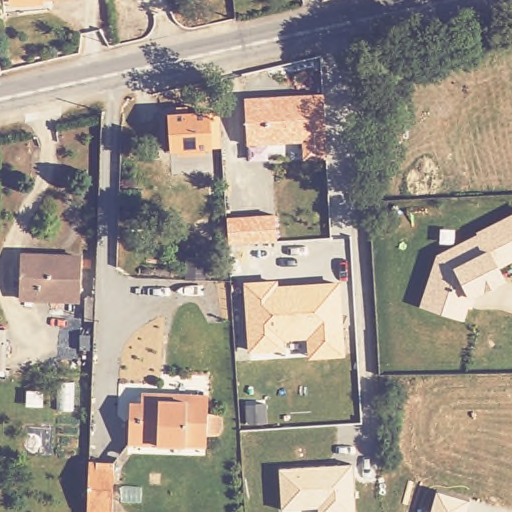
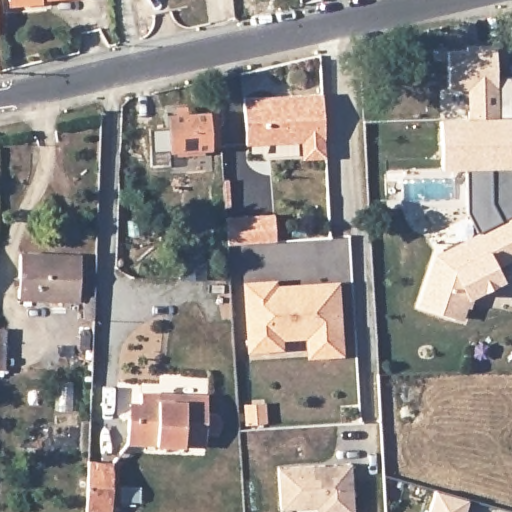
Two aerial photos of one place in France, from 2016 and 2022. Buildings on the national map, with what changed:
unchanged [(36,12),(22,14),(22,7),(8,9),(7,0),(79,0),(80,7),(36,10),(36,12)]
unchanged [(0,39),(0,26),(2,39),(0,39)]
new [(465,170),(441,171),(440,119),(467,117),(466,91),(450,91),(447,50),(467,50),(467,45),(495,46),(498,77),(512,77),(512,207),(475,226),(467,212),(465,170)]
unchanged [(245,99),(322,94),(325,159),(300,161),(301,141),(247,145),(245,99)]
unchanged [(176,158),(176,153),(170,154),(167,114),(208,111),(219,111),(221,149),(212,150),(205,151),(205,156),(176,158)]
unchanged [(507,285),(476,297),(475,304),(472,304),(467,319),(417,302),(434,251),(477,231),(475,226),(512,207),(512,257),(499,263),(507,285)]
unchanged [(226,217),(275,215),(275,241),(228,244),(226,217)]
unchanged [(25,258),(84,262),(81,305),(22,302),(25,258)]
unchanged [(307,350),(248,352),(244,281),(277,280),(277,285),(340,281),(343,357),(307,359),(307,350)]
unchanged [(134,403),(146,403),(146,396),(165,397),(165,403),(211,404),(210,447),(133,446),(134,403)]
unchanged [(110,512),(85,511),(86,461),(112,462),(110,512)]
unchanged [(352,463),(354,512),(317,512),(316,506),(280,509),(278,467),(352,463)]
unchanged [(468,512),(430,512),(435,490),(471,500),(468,512)]

